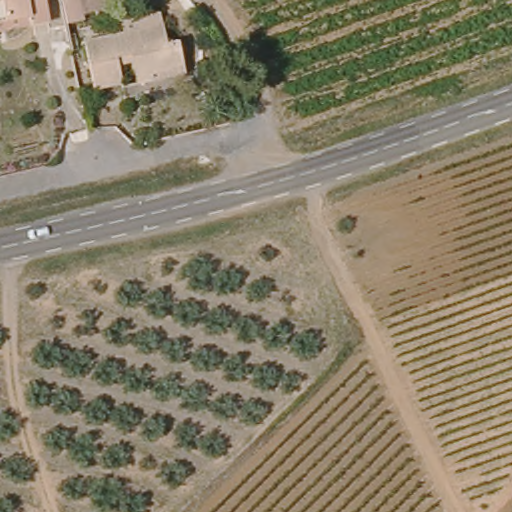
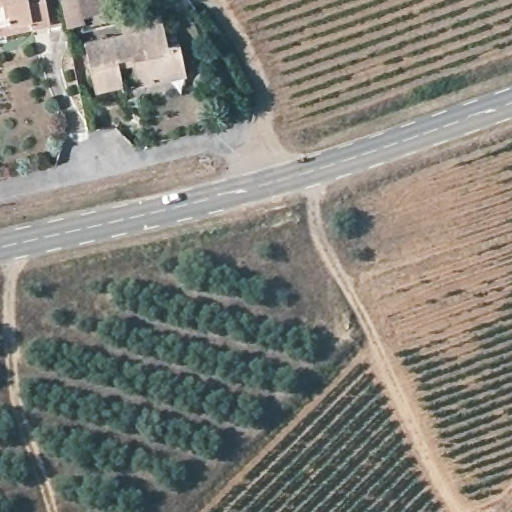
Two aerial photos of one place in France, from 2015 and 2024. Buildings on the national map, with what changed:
unchanged [(43,11),(22,15),(0,19),(0,0),(41,0),(43,11)]
unchanged [(50,20),(45,0),(63,0),(67,16),(50,20)]
unchanged [(137,87),(133,66),(117,69),(120,84),(95,89),(84,44),(131,34),(129,17),(158,11),(161,28),(166,43),(177,41),(184,70),(186,78),(151,85),(137,87)]

